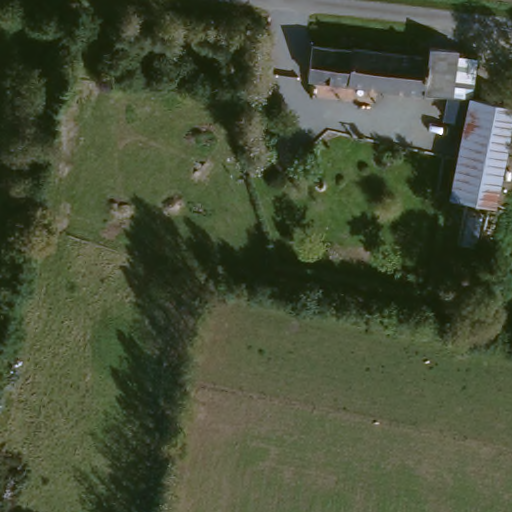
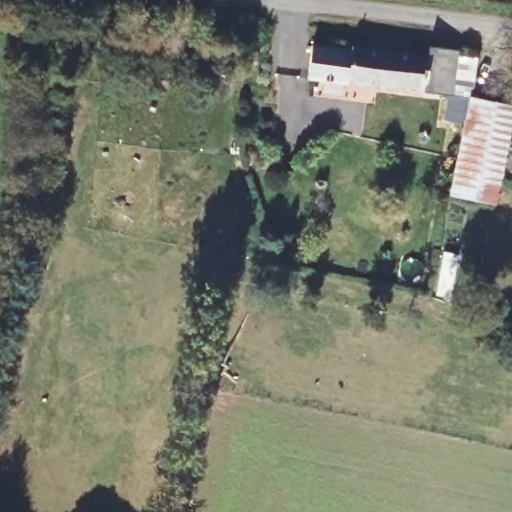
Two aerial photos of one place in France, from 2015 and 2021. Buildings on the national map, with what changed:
unchanged [(65,32),(62,69),(51,68),(54,30),(65,32)]
unchanged [(308,76),(311,47),(372,53),(373,47),(425,54),(426,47),(454,50),(449,92),(308,76)]
unchanged [(486,207),(451,200),(468,103),(505,112),(486,207)]

